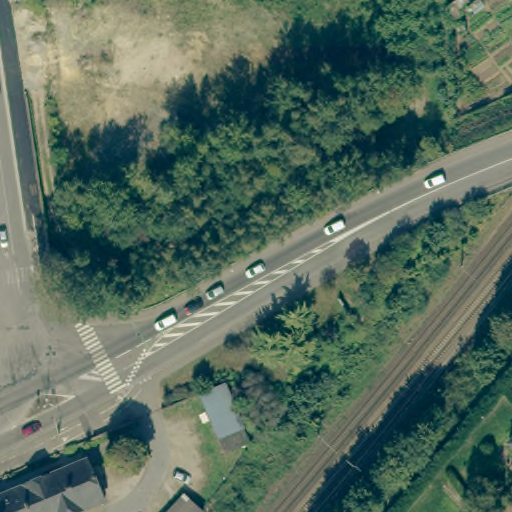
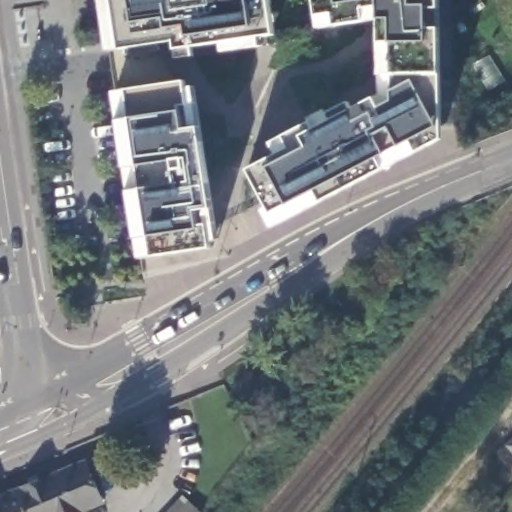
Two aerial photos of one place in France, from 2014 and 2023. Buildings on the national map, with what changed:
new [(278,34),(260,37),(261,48),(225,54),(222,43),(194,47),(196,58),(180,61),(181,82),(187,81),(189,88),(195,87),(200,128),(212,208),(218,240),(212,241),(214,247),(144,258),(139,237),(131,192),(127,167),(122,122),(117,92),(111,52),(102,0),(273,0),(278,34)]
new [(441,9),(428,9),(428,28),(441,28),(441,74),(441,139),(272,228),(263,211),(268,207),(249,170),(276,156),(270,143),(285,135),(349,100),(353,110),(376,98),(378,74),(379,20),(320,30),(315,0),(441,0),(441,9)]
demolished [(226,384),(250,442),(225,454),(200,395),(226,384)]
unchanged [(512,439),(512,444),(510,441),(512,439)]
unchanged [(30,487),(28,482),(37,478),(39,482),(86,463),(103,503),(80,512),(0,512),(0,499),(30,487)]
unchanged [(208,509),(205,512),(171,512),(190,492),(208,509)]

